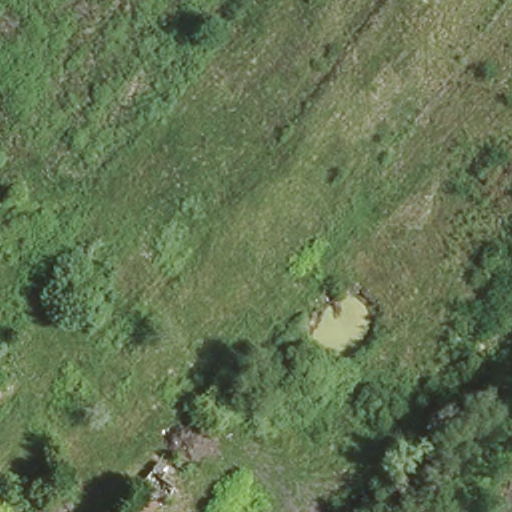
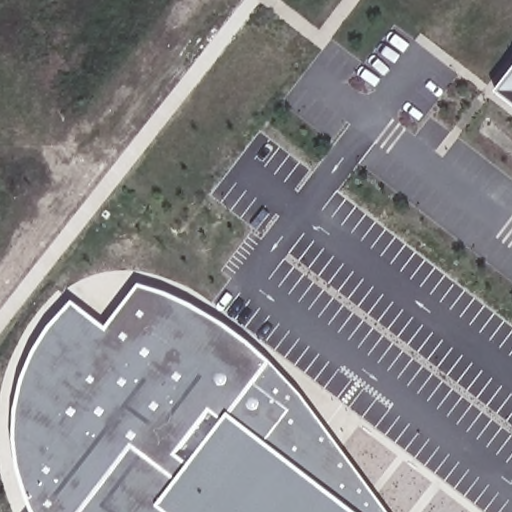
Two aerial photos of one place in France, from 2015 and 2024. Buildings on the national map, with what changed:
new [(512,75),(512,105),(497,94),(512,75)]
new [(24,496),(18,474),(15,456),(13,433),(14,412),(19,391),(25,373),(32,354),(43,334),(59,316),(72,301),(105,329),(139,284),(171,295),(193,306),(224,323),(252,344),(273,364),(301,393),(343,450),(389,512),(31,512),(24,496)]
demolished [(52,503),(67,512),(47,512),(52,503)]

